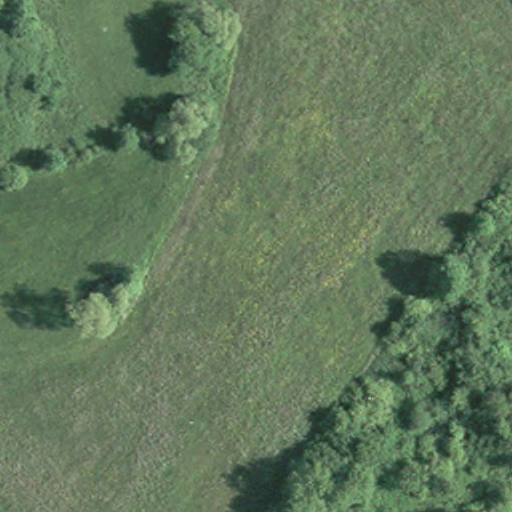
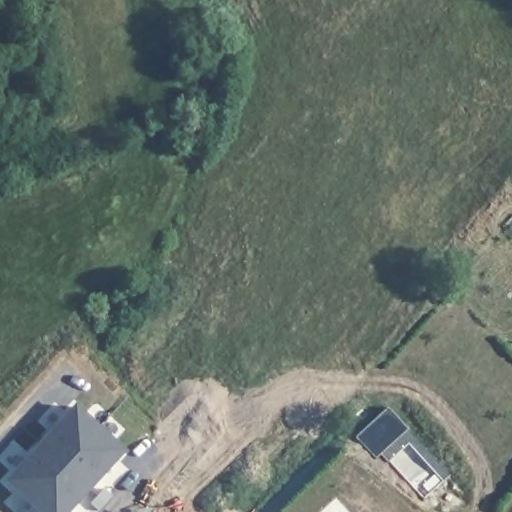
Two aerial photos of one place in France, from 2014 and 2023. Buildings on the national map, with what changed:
new [(123,452),(67,512),(40,512),(7,481),(75,407),(123,452)]

